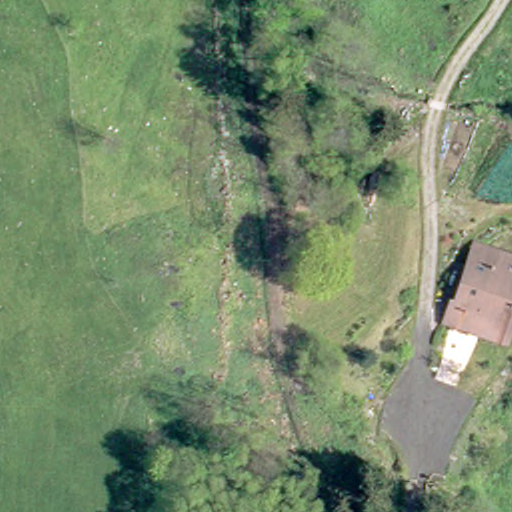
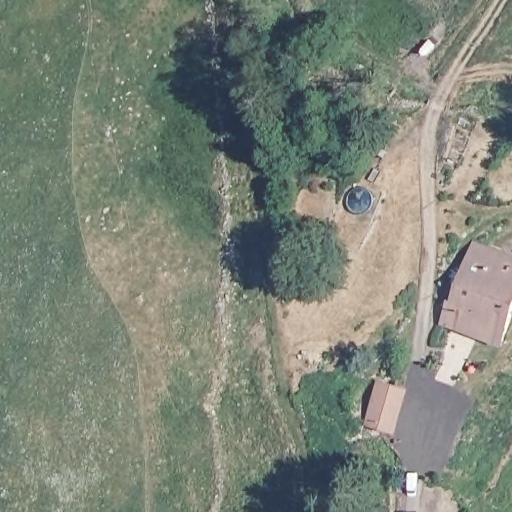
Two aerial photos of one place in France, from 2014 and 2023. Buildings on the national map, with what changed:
unchanged [(512,256),(512,310),(492,343),(438,311),(482,239),(512,256)]
new [(377,386),(402,392),(393,430),(374,426),(370,413),(377,386)]

